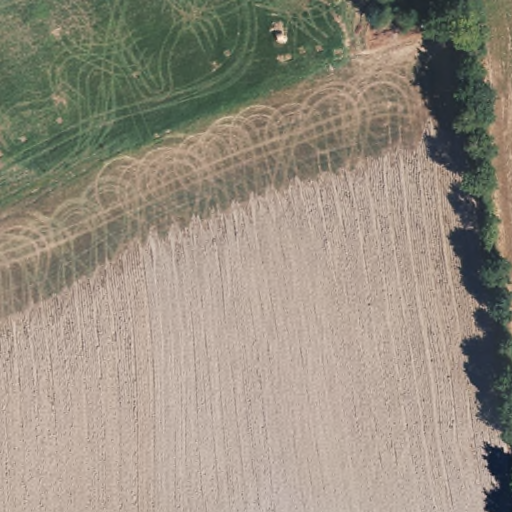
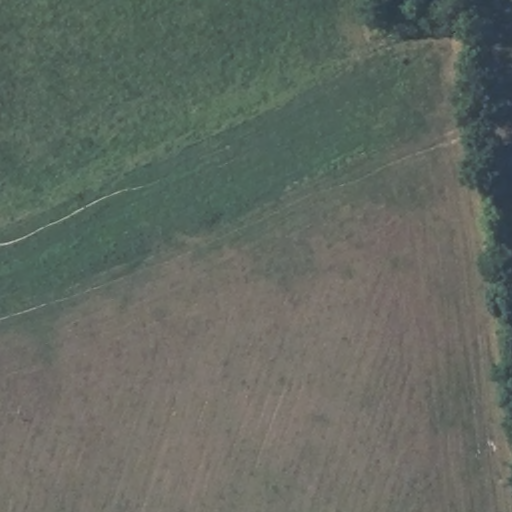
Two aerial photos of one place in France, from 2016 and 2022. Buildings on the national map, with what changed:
[]

